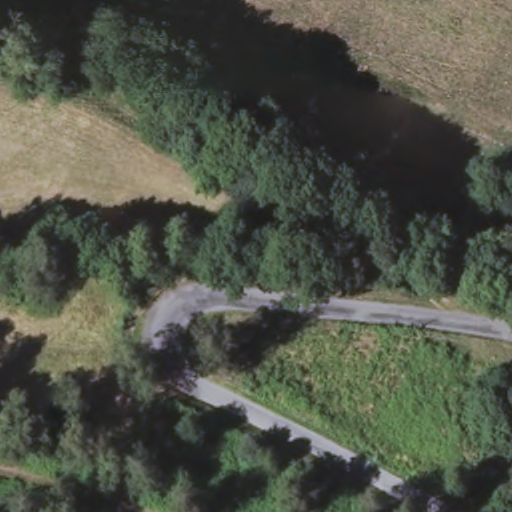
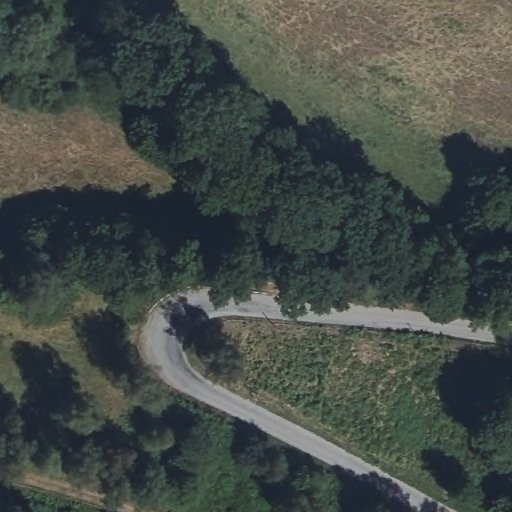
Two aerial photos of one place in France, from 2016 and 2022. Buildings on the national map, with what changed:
[]

